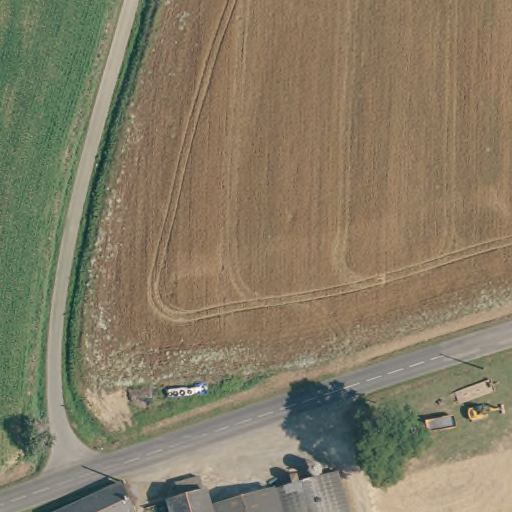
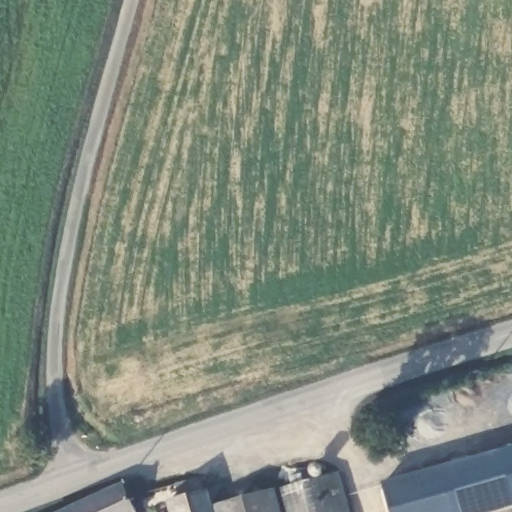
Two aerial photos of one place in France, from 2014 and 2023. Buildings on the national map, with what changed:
new [(497,512),(390,512),(381,484),(512,447),(512,508),(497,512)]
unchanged [(349,512),(279,512),(271,489),(334,468),(349,512)]
unchanged [(173,498),(169,486),(196,477),(202,491),(209,512),(167,512),(163,501),(173,498)]
unchanged [(61,512),(129,482),(142,512),(61,512)]
unchanged [(279,512),(210,512),(271,489),(279,512)]

